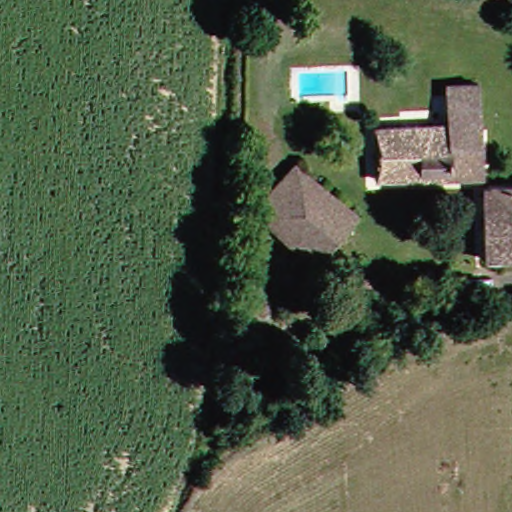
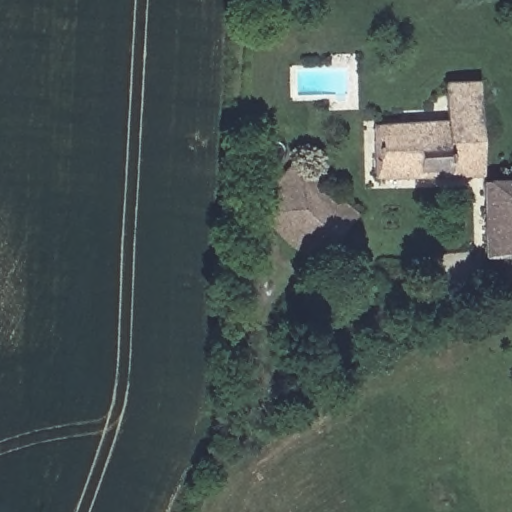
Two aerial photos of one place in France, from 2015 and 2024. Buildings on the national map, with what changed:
unchanged [(391,177),(388,127),(431,127),(431,120),(452,123),(453,91),(452,82),(488,83),(489,91),(490,175),(391,177)]
unchanged [(345,197),(364,216),(313,267),(250,217),(307,154),(346,185),(345,197)]
unchanged [(490,259),(492,192),(512,191),(512,259),(490,259)]

